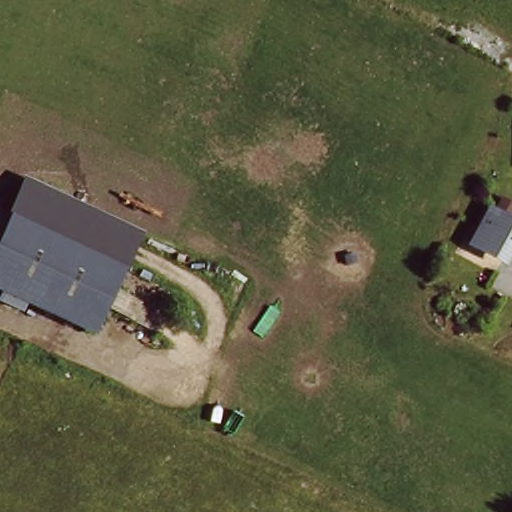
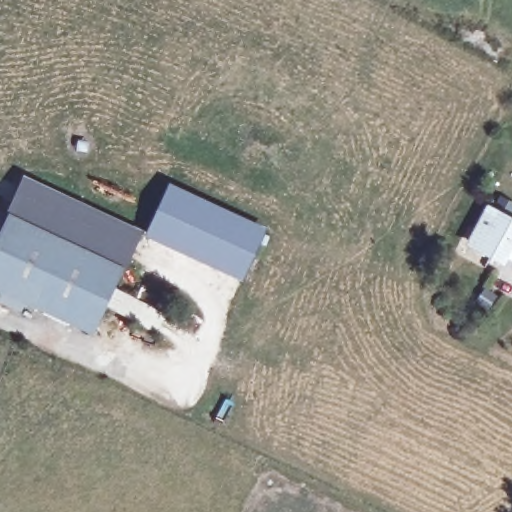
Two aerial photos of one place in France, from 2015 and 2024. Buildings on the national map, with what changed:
unchanged [(27,179),(145,233),(127,264),(93,339),(0,295),(0,235),(9,217),(27,179)]
new [(146,236),(169,184),(267,228),(242,280),(146,236)]
unchanged [(502,259),(492,254),(491,256),(470,245),(489,209),(512,222),(512,258),(505,254),(502,259)]
unchanged [(9,217),(0,235),(0,213),(9,217)]

